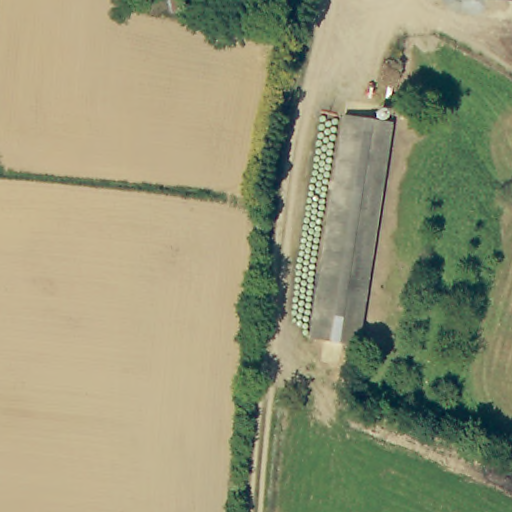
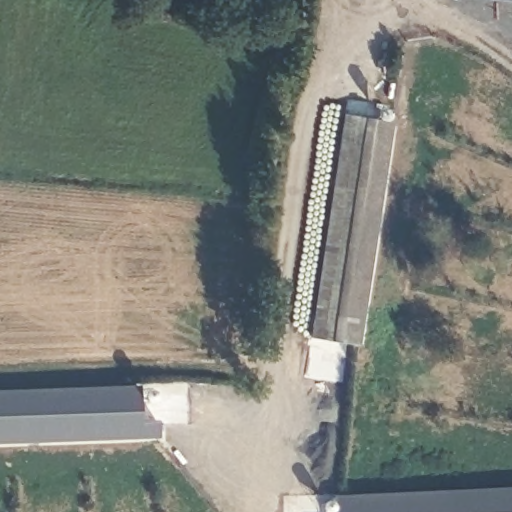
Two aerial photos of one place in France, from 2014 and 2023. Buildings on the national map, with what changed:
unchanged [(392,127),(352,350),(303,340),(344,119),(392,127)]
new [(140,425),(157,424),(158,441),(0,447),(0,392),(138,386),(140,425)]
new [(512,489),(512,512),(331,512),(330,498),(512,489)]

